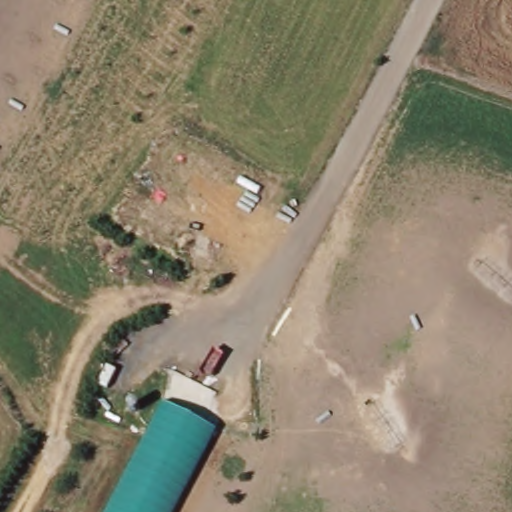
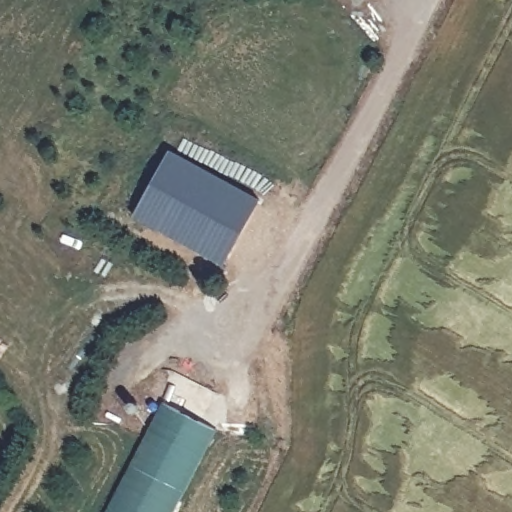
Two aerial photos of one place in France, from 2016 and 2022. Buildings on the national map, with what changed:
new [(172,151),(261,201),(224,266),(136,216),(172,151)]
unchanged [(162,406),(215,431),(172,512),(107,512),(162,406)]

